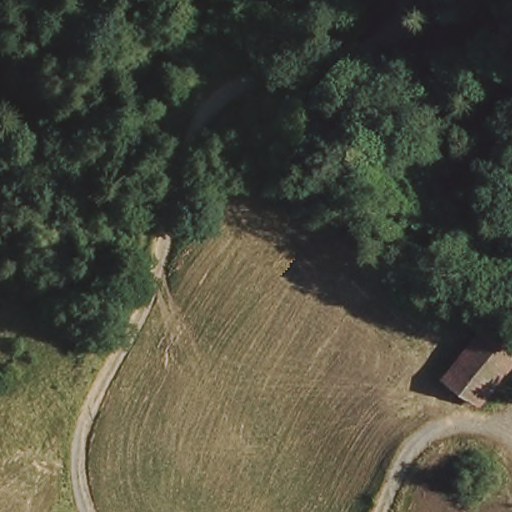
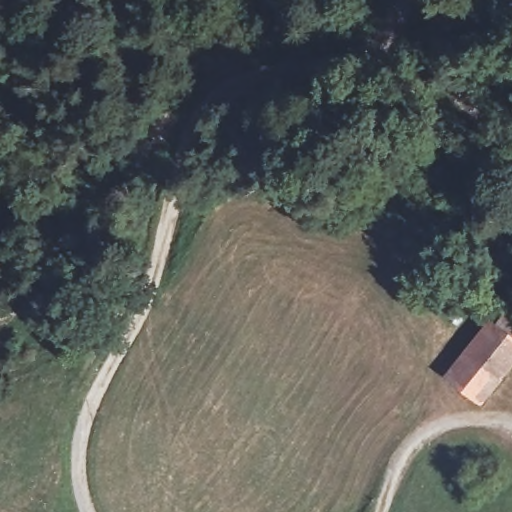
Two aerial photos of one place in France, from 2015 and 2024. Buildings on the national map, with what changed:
unchanged [(512,366),(480,404),(442,376),(484,320),(512,338),(512,366)]

